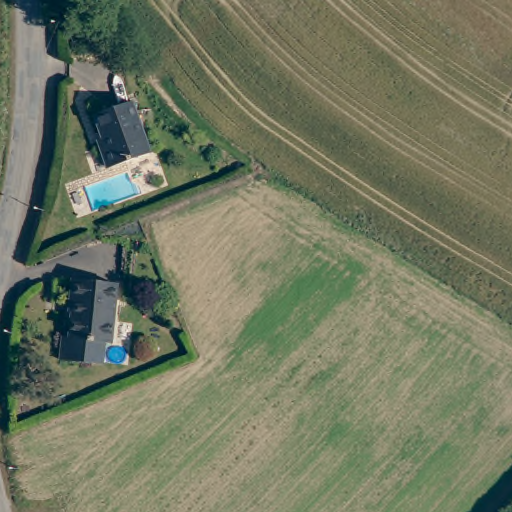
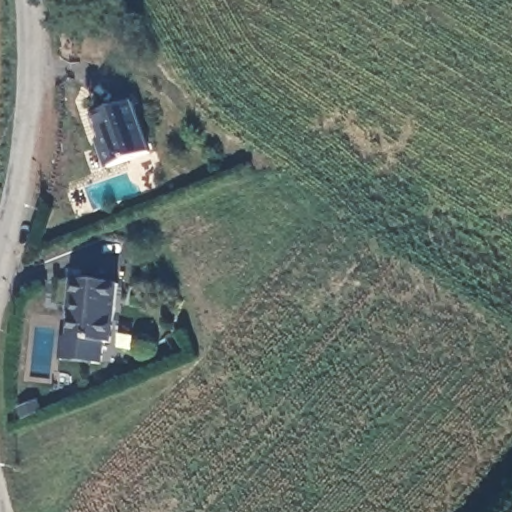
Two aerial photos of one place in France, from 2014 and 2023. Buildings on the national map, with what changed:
unchanged [(150,153),(108,168),(100,146),(105,144),(95,116),(133,102),(150,153)]
unchanged [(71,299),(69,299),(72,278),(115,283),(109,342),(68,337),(71,299)]

